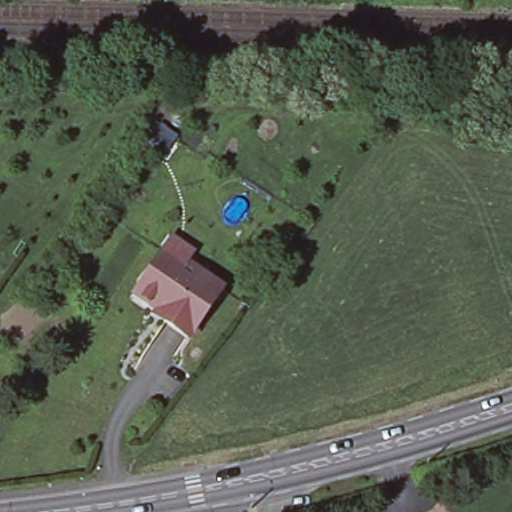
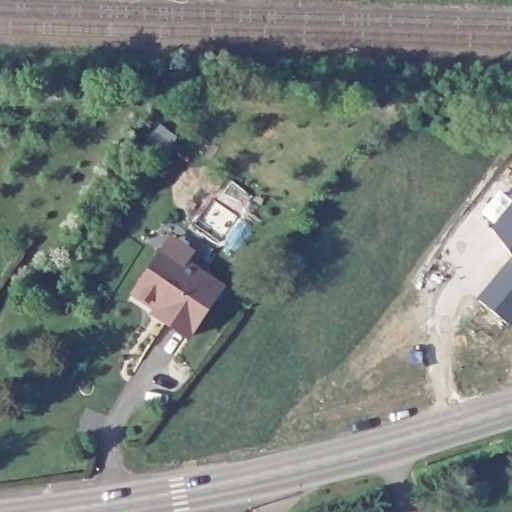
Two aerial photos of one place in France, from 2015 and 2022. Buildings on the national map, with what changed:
new [(511,247),(509,249),(493,228),(512,205),(512,248),(511,247)]
unchanged [(139,299),(136,297),(163,256),(174,240),(179,244),(193,253),(185,266),(223,291),(190,340),(166,324),(156,318),(159,312),(139,299)]
new [(507,322),(479,299),(512,259),(512,316),(507,322)]

